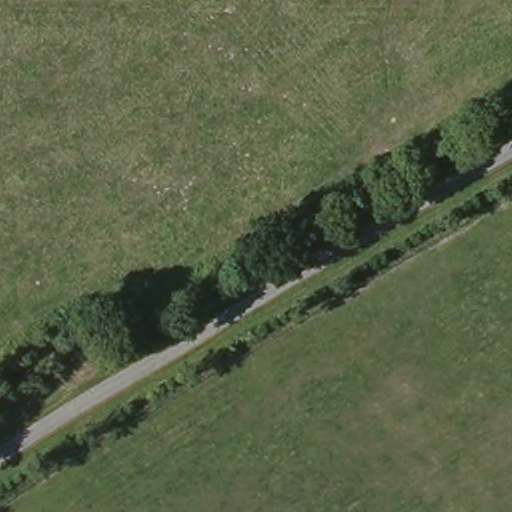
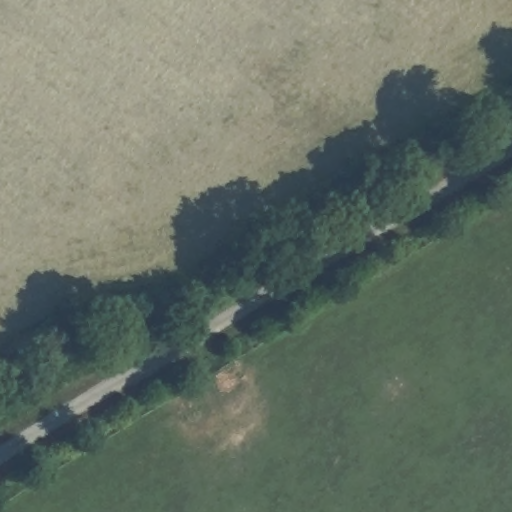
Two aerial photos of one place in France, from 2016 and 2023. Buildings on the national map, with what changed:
unchanged [(186,392),(177,387),(183,377),(192,382),(186,392)]

